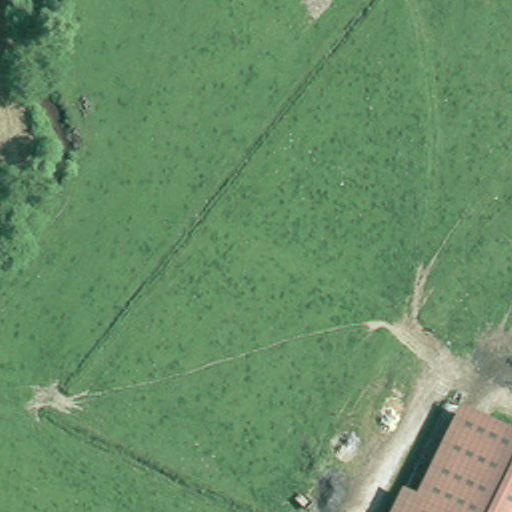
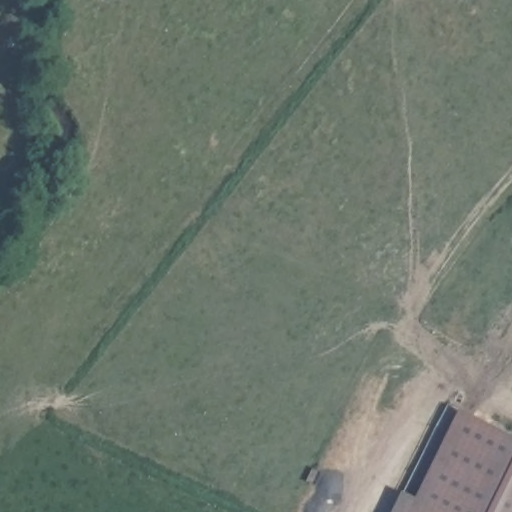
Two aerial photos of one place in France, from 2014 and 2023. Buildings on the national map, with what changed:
unchanged [(512,512),(392,512),(402,488),(419,498),(462,406),(512,431),(512,512)]

